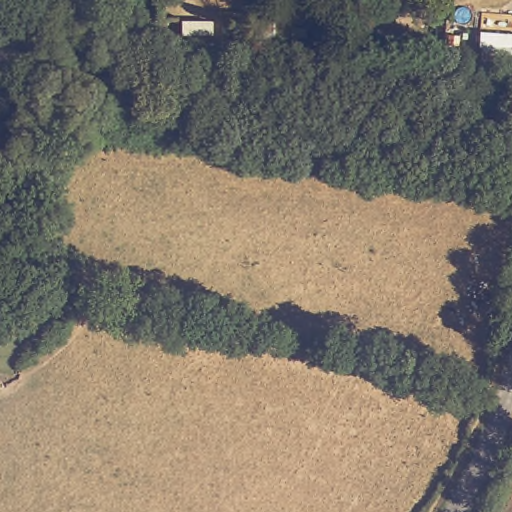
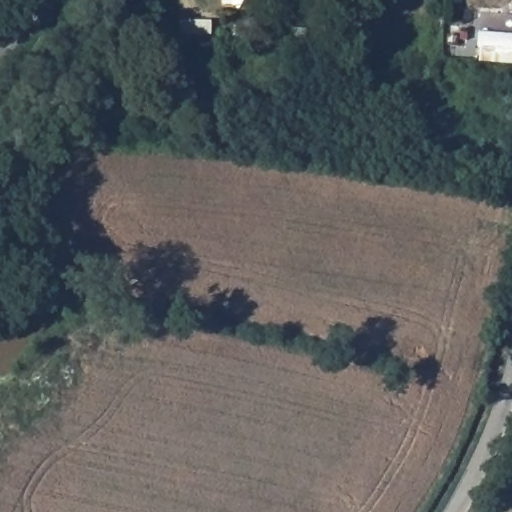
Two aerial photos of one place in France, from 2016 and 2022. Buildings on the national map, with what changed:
unchanged [(428,19),(426,42),(394,39),(394,15),(428,19)]

